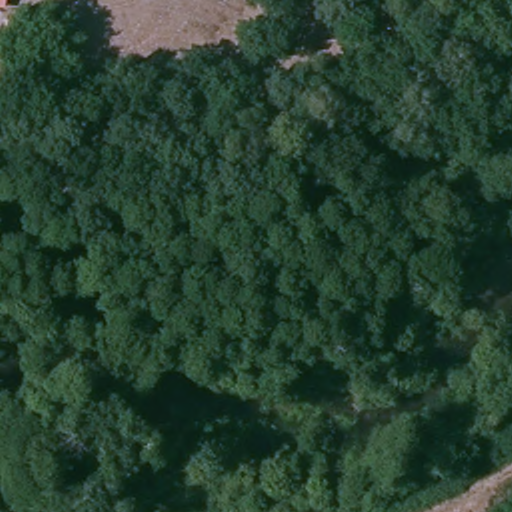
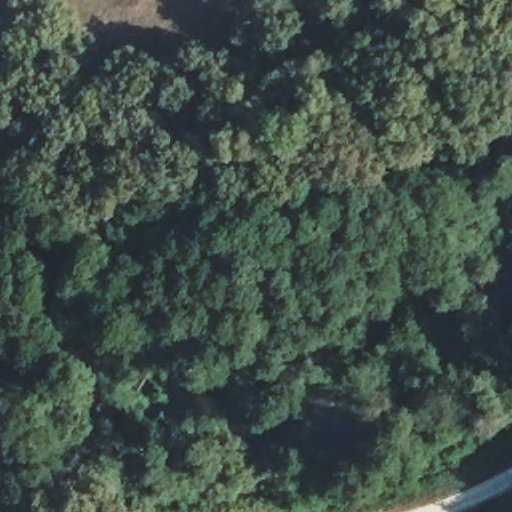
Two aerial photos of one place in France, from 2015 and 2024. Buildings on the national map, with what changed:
unchanged [(0,8),(0,0),(5,0),(4,8),(0,8)]

